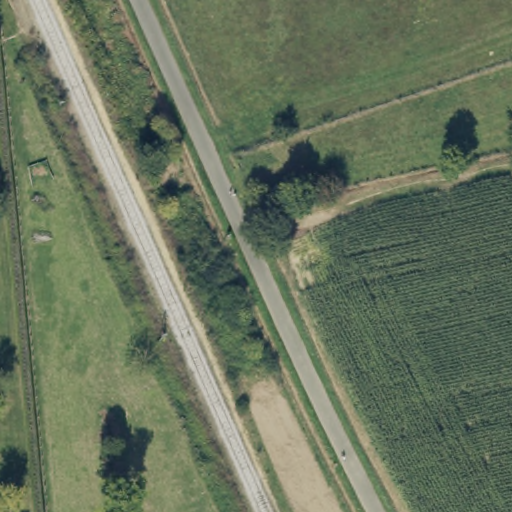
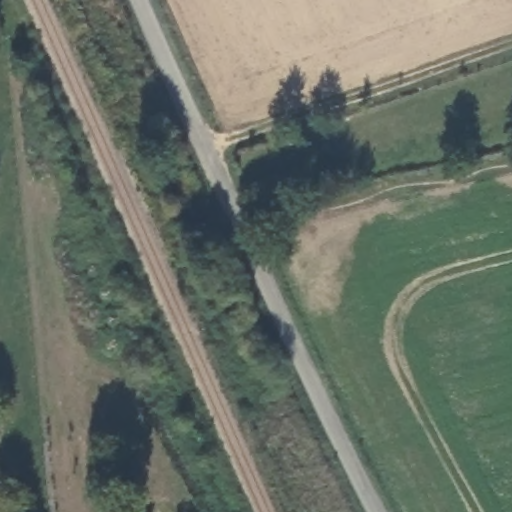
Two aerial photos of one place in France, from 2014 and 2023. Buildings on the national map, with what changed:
[]

